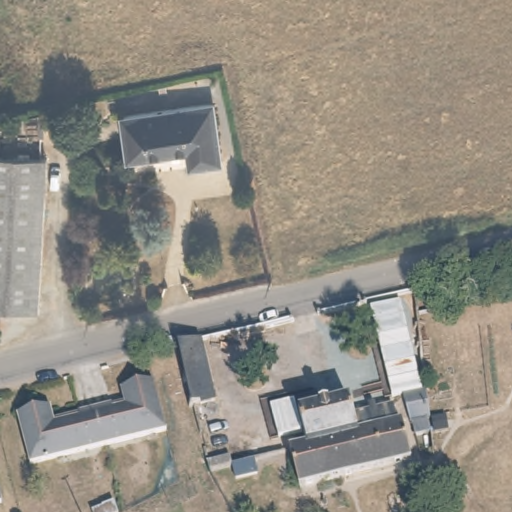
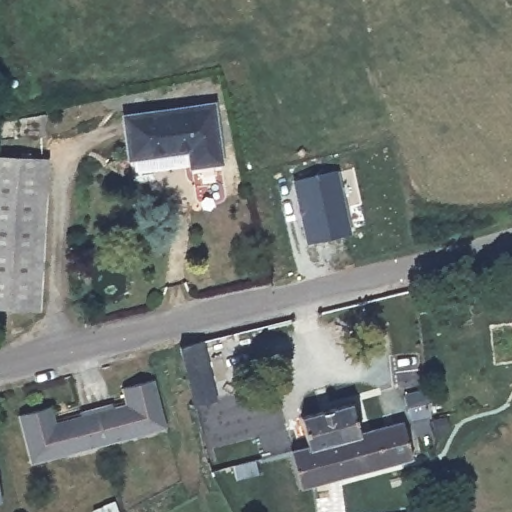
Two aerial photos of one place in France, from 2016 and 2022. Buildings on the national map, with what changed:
unchanged [(137,157),(132,113),(142,112),(217,103),(225,162),(199,165),(196,151),(154,155),(137,157)]
unchanged [(44,154),(34,303),(0,303),(0,152),(44,154)]
new [(305,242),(290,181),(337,171),(352,233),(305,242)]
unchanged [(218,411),(195,417),(180,357),(206,350),(218,411)]
unchanged [(166,421),(24,453),(12,405),(45,397),(50,417),(74,412),(72,406),(105,397),(106,401),(124,398),(120,378),(154,371),(166,421)]
unchanged [(417,437),(412,422),(405,397),(427,393),(432,438),(417,437)]
unchanged [(415,464),(302,491),(291,453),(311,447),(303,421),(352,407),(357,419),(395,412),(400,427),(405,427),(415,464)]
unchanged [(217,462),(244,457),(246,466),(219,475),(217,462)]
unchanged [(4,499),(0,500),(0,485),(4,499)]

